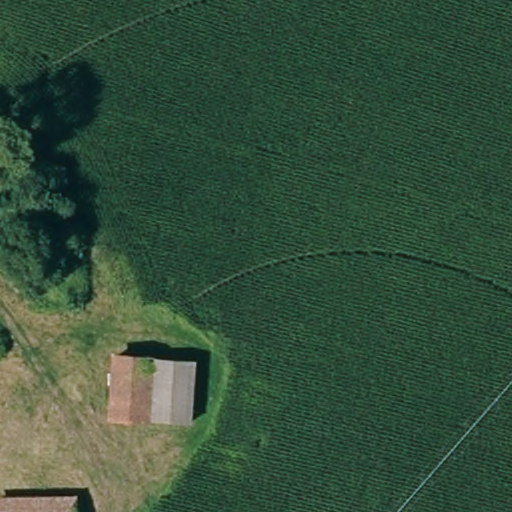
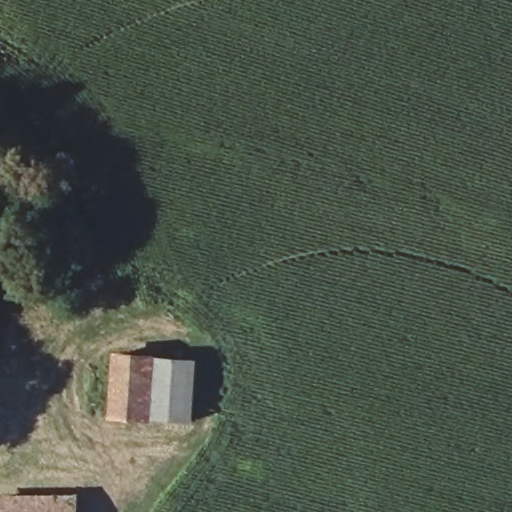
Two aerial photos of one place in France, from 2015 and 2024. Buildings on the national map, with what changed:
unchanged [(152,418),(111,417),(114,355),(153,356),(152,418)]
unchanged [(195,357),(195,419),(152,418),(153,356),(195,357)]
unchanged [(74,500),(74,512),(2,512),(2,502),(74,500)]

